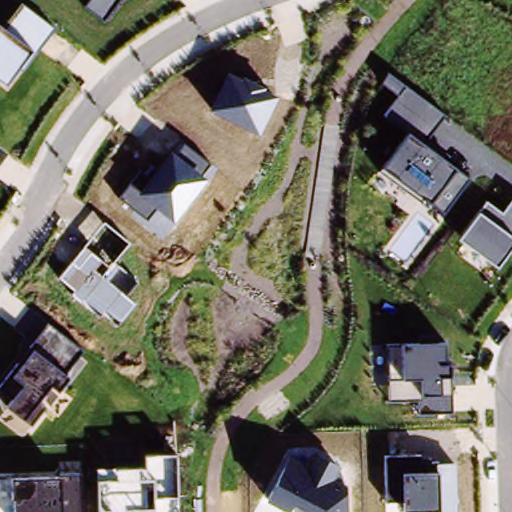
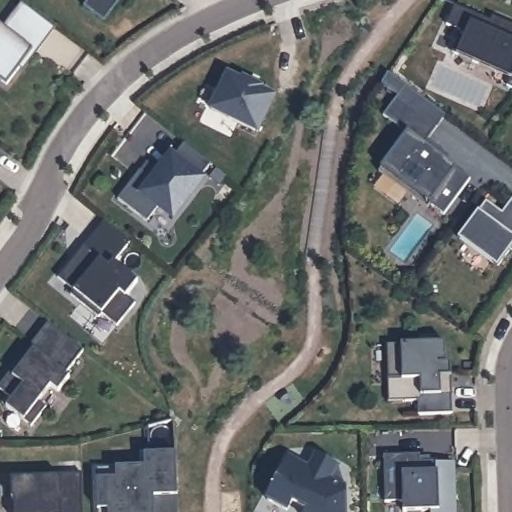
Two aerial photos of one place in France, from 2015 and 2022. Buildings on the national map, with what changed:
unchanged [(85,5),(89,0),(118,0),(103,18),(85,5)]
new [(495,16),(497,12),(512,19),(512,67),(484,54),(483,59),(456,47),(466,26),(451,20),(459,0),(495,16)]
unchanged [(21,4),(53,27),(23,68),(19,65),(4,81),(0,78),(0,26),(3,28),(21,4)]
unchanged [(278,96),(260,133),(208,109),(227,74),(278,96)]
unchanged [(446,115),(425,144),(456,168),(468,179),(443,213),(427,201),(381,167),(397,147),(372,131),(388,106),(375,97),(389,76),(446,115)]
new [(511,81),(512,79),(512,81),(511,81)]
unchanged [(203,177),(206,179),(175,223),(154,207),(146,217),(118,197),(143,163),(151,168),(166,148),(178,154),(185,144),(211,162),(203,177)]
unchanged [(478,212),(487,201),(504,213),(512,202),(512,250),(510,248),(497,266),(458,238),(478,212)]
unchanged [(114,262),(138,281),(126,296),(134,303),(119,320),(106,310),(100,314),(84,300),(82,302),(72,295),(74,290),(60,278),(104,223),(128,242),(114,262)]
unchanged [(83,352),(68,374),(70,377),(57,392),(50,387),(41,400),(46,408),(31,426),(5,403),(20,382),(11,374),(48,325),(83,352)]
unchanged [(444,342),(443,362),(451,361),(452,412),(421,411),(421,399),(389,400),(388,343),(444,342)]
unchanged [(339,468),(336,478),(346,482),(346,512),(304,512),(304,511),(291,504),(288,510),(266,500),(299,448),(339,468)]
unchanged [(421,454),(421,459),(454,461),(456,512),(429,512),(429,511),(402,511),(402,500),(386,500),(386,455),(421,454)]
unchanged [(141,467),(141,456),(177,456),(179,512),(96,512),(95,466),(141,467)]
unchanged [(81,474),(83,512),(14,512),(13,476),(81,474)]

